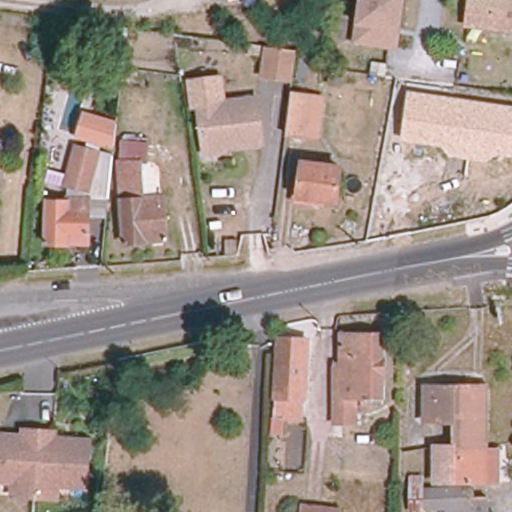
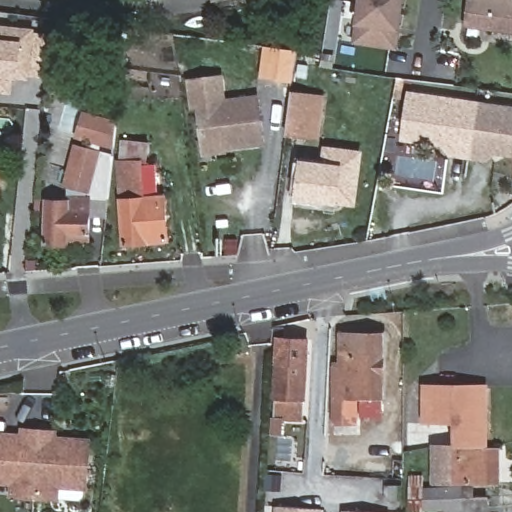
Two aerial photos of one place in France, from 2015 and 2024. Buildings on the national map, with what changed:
unchanged [(352,44),(358,0),(406,0),(397,49),(352,44)]
unchanged [(467,0),(512,0),(512,32),(464,28),(467,0)]
new [(51,34),(47,80),(34,78),(11,81),(10,95),(0,93),(0,28),(51,34)]
unchanged [(284,75),(254,71),(258,41),(288,46),(284,75)]
unchanged [(287,74),(290,51),(300,51),(297,75),(287,74)]
unchanged [(225,149),(226,153),(200,154),(196,111),(190,112),(187,79),(221,75),(225,97),(258,94),(262,145),(225,149)]
unchanged [(449,157),(442,146),(400,141),(407,91),(512,106),(512,157),(493,155),(485,162),(449,157)]
unchanged [(290,110),(292,93),(324,98),(319,139),(287,135),(290,110)]
unchanged [(85,198),(85,187),(61,187),(78,112),(114,121),(107,200),(85,198)]
unchanged [(121,175),(120,162),(120,143),(146,142),(147,161),(142,162),(145,199),(165,197),(169,240),(126,244),(121,175)]
unchanged [(342,167),(337,204),(298,199),(303,162),(342,167)]
unchanged [(41,254),(43,197),(61,198),(61,187),(85,187),(85,198),(85,223),(85,244),(64,244),(64,255),(41,254)]
unchanged [(341,372),(341,334),(385,334),(385,398),(357,398),(357,413),(335,413),(335,372),(341,372)]
unchanged [(310,340),(305,421),(282,420),(281,436),(273,435),(279,338),(310,340)]
unchanged [(450,423),(420,423),(420,386),(482,386),(482,448),(450,447),(450,423)]
unchanged [(24,430),(24,423),(55,425),(55,432),(90,434),(86,481),(59,479),(57,492),(13,489),(14,477),(0,476),(0,428),(24,430)]
unchanged [(493,448),(493,483),(430,483),(430,447),(450,447),(482,448),(493,448)]
unchanged [(456,498),(483,497),(484,512),(442,512),(441,510),(406,510),(406,489),(456,487),(456,498)]
new [(324,512),(275,512),(275,505),(325,508),(324,512)]
demolished [(340,511),(339,512),(304,512),(305,506),(340,511)]
new [(343,510),(383,512),(343,512),(343,510)]

